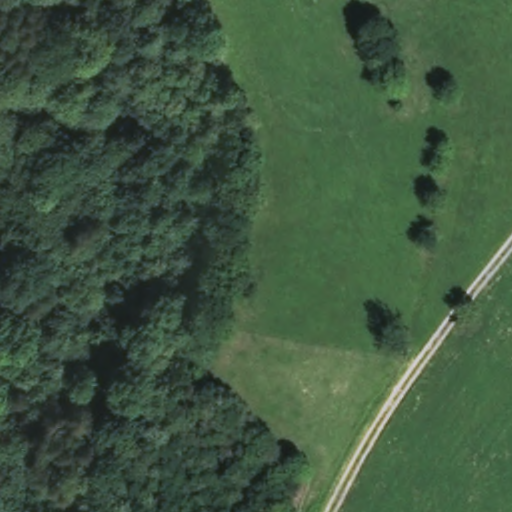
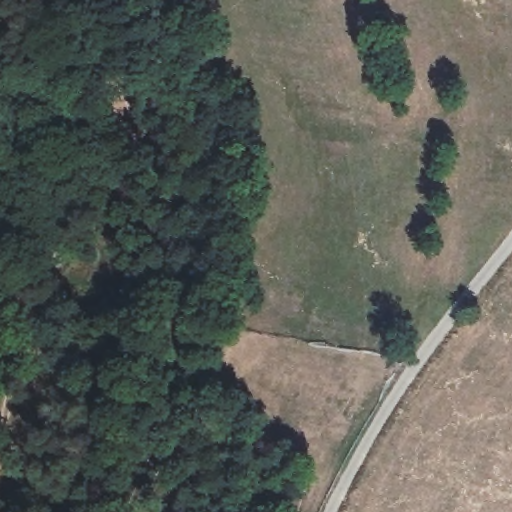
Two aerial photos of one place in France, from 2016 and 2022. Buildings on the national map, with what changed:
[]

